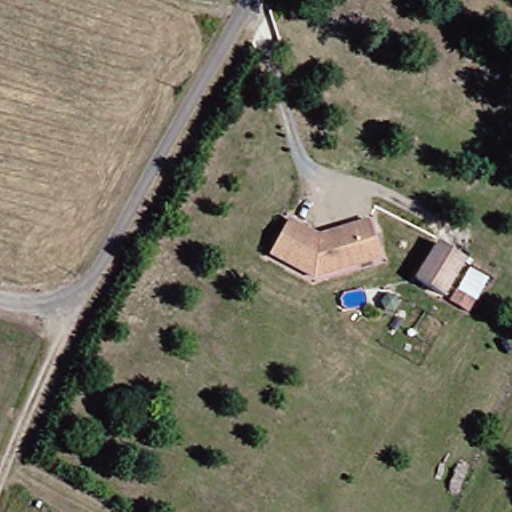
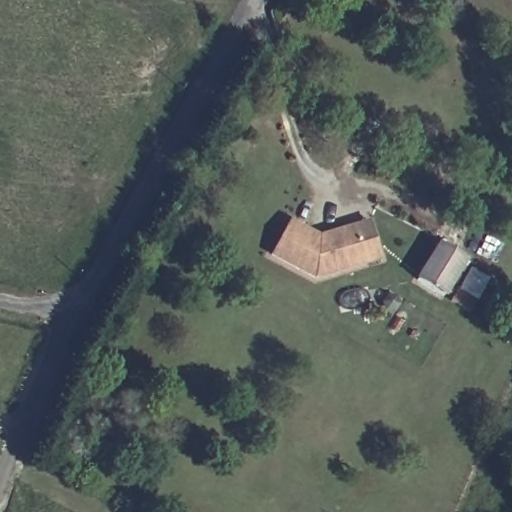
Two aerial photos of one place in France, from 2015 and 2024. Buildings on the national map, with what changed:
unchanged [(306,282),(267,258),(288,226),(312,242),(355,234),(369,231),(372,256),(377,270),(306,282)]
unchanged [(433,246),(463,265),(441,301),(411,282),(433,246)]

